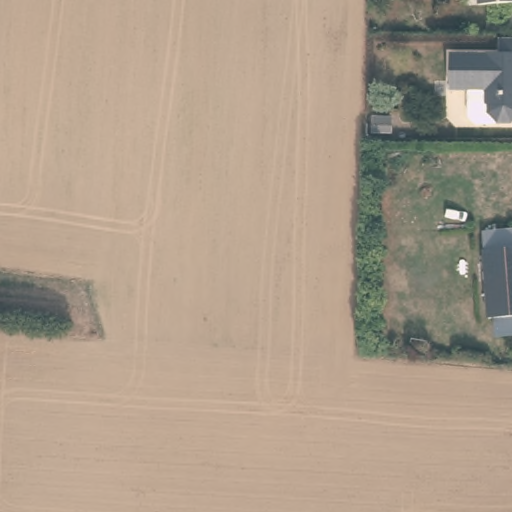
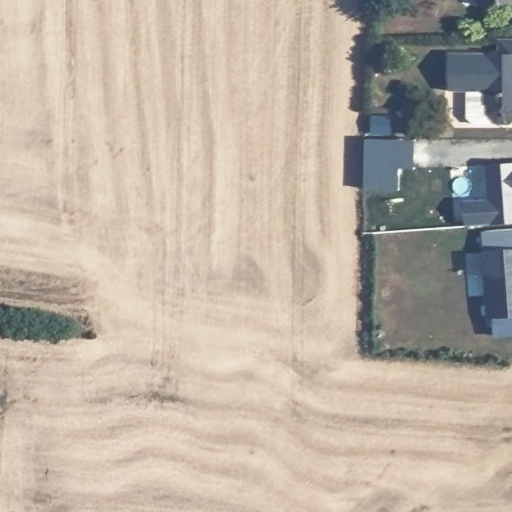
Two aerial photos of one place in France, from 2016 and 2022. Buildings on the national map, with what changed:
unchanged [(479,0),(512,0),(512,4),(479,5),(479,0)]
unchanged [(469,89),(451,90),(451,52),(501,52),(501,36),(512,36),(512,122),(511,122),(499,122),(476,122),(469,116),(469,89)]
new [(364,189),(366,139),(402,141),(402,190),(364,189)]
new [(463,200),(488,199),(485,163),(512,162),(512,223),(465,226),(463,200)]
unchanged [(484,248),(484,230),(512,228),(512,315),(489,317),(484,248)]

